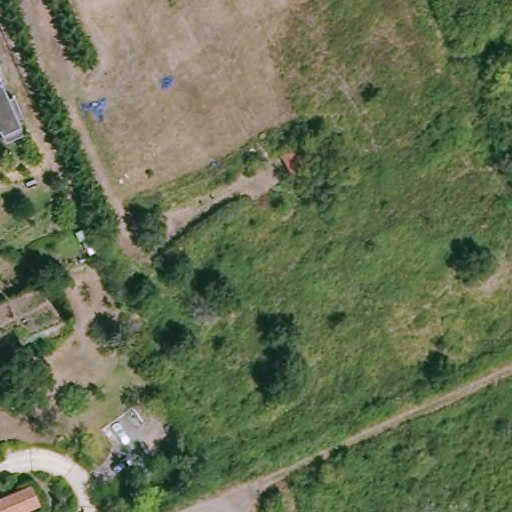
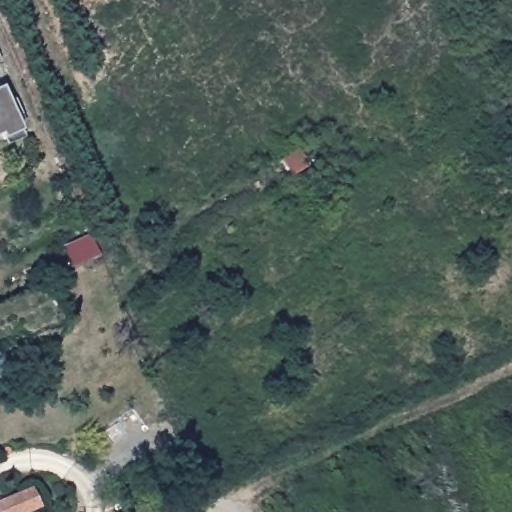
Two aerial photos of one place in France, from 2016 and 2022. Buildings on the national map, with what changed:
unchanged [(2,103),(10,101),(17,118),(11,122),(15,134),(0,141),(0,98),(2,103)]
unchanged [(32,488),(40,510),(36,512),(0,512),(0,500),(32,488)]

